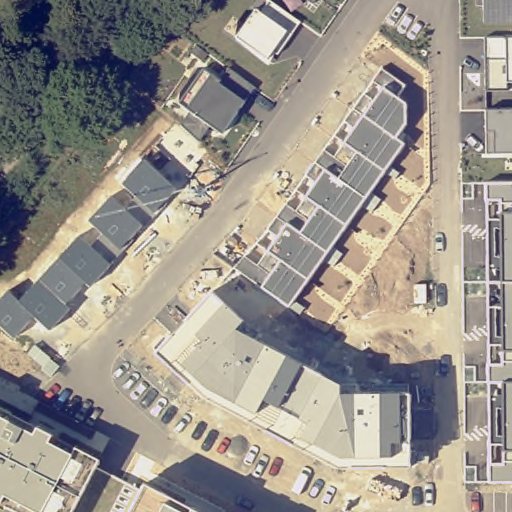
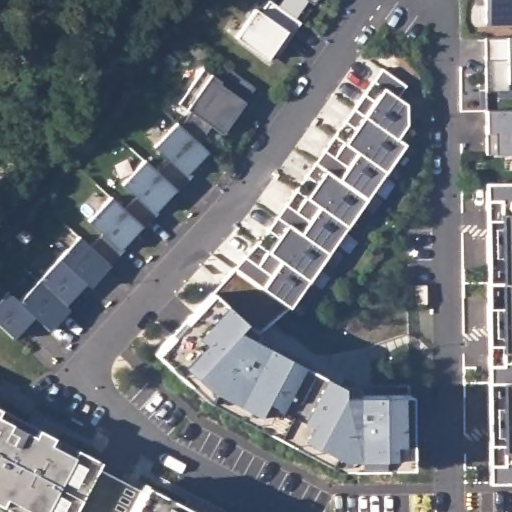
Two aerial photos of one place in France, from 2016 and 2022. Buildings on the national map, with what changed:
unchanged [(221,26),(233,11),(245,20),(256,6),(260,9),(266,0),(270,0),(299,20),(276,53),(270,50),(266,57),(235,36),(221,26)]
unchanged [(314,0),(312,2),(310,0),(314,0)]
unchanged [(485,0),(512,0),(512,23),(485,23),(485,0)]
unchanged [(507,36),(512,36),(512,80),(507,80),(507,89),(486,88),(486,37),(507,36)]
unchanged [(212,125),(209,123),(192,111),(186,107),(177,101),(204,67),(211,73),(218,78),(227,65),(252,86),(242,100),(220,131),(212,125)]
unchanged [(242,323),(223,303),(210,291),(232,267),(244,256),(257,264),(266,251),(276,237),(268,229),(285,204),(296,212),(305,197),(314,183),(305,175),(317,159),(322,150),(333,157),(343,143),(352,129),(343,120),(362,93),(371,102),(381,88),(372,79),(380,68),(404,85),(397,97),(403,102),(405,123),(394,137),(402,143),(287,304),(252,332),(242,323)]
unchanged [(486,108),(512,108),(512,152),(492,152),(485,152),(487,130),(486,108)]
unchanged [(0,326),(0,299),(8,290),(18,301),(36,281),(58,256),(77,235),(91,247),(103,233),(90,220),(111,196),(125,209),(136,196),(122,182),(144,159),(157,170),(167,158),(155,145),(177,121),(181,125),(192,111),(209,123),(197,142),(207,150),(184,173),(174,188),(152,210),(140,224),(118,248),(109,263),(91,286),(84,281),(66,304),(69,307),(50,331),(32,315),(12,336),(0,326)]
unchanged [(488,382),(488,365),(487,307),(486,182),(512,182),(512,481),(490,482),(488,444),(488,382)]
unchanged [(154,352),(210,291),(223,303),(242,323),(252,332),(262,343),(286,355),(299,363),(321,374),(340,385),(353,394),(397,393),(408,392),(409,465),(334,466),(292,443),(264,429),(202,396),(187,382),(154,352)]
unchanged [(35,426),(51,436),(73,447),(97,460),(94,466),(68,512),(16,512),(0,504),(0,409),(35,426)]
unchanged [(128,512),(68,512),(94,466),(139,490),(128,512)]
unchanged [(139,490),(143,483),(190,509),(196,512),(128,512),(139,490)]
unchanged [(16,512),(0,512),(0,504),(16,512)]

